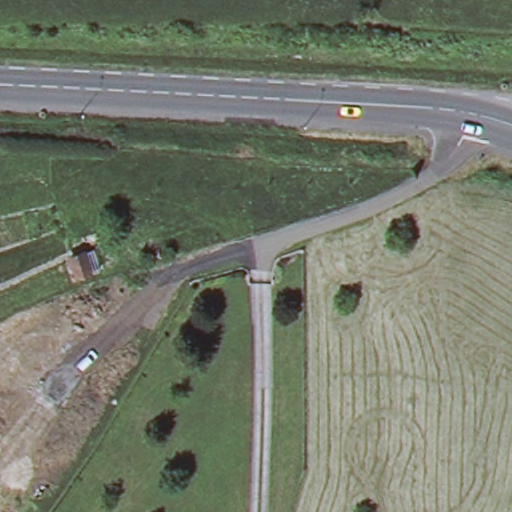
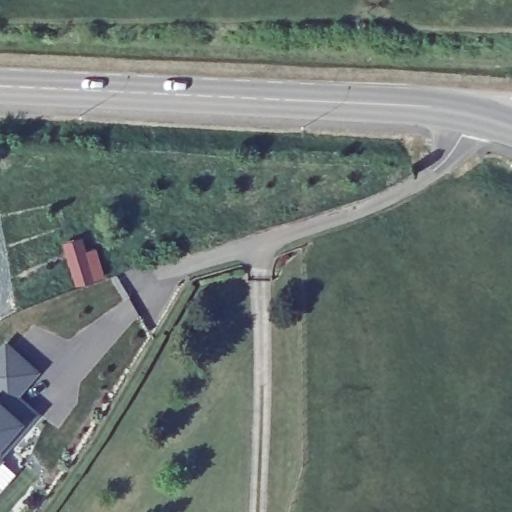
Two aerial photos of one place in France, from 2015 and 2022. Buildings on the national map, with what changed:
new [(95,247),(103,274),(78,282),(70,255),(95,247)]
new [(42,370),(20,394),(41,412),(2,457),(5,458),(0,463),(0,345),(5,338),(42,370)]

